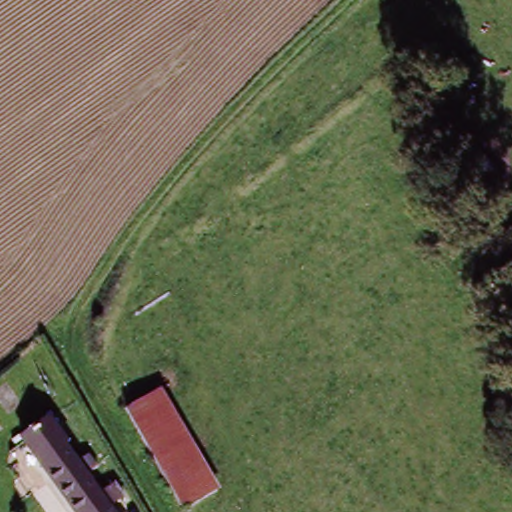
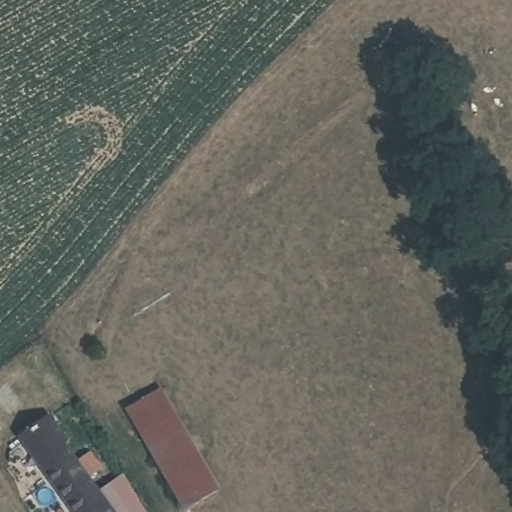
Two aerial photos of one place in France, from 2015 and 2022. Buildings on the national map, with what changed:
unchanged [(176,512),(120,415),(154,395),(214,495),(187,512),(176,512)]
unchanged [(58,408),(73,437),(65,442),(110,512),(67,512),(17,432),(58,408)]

